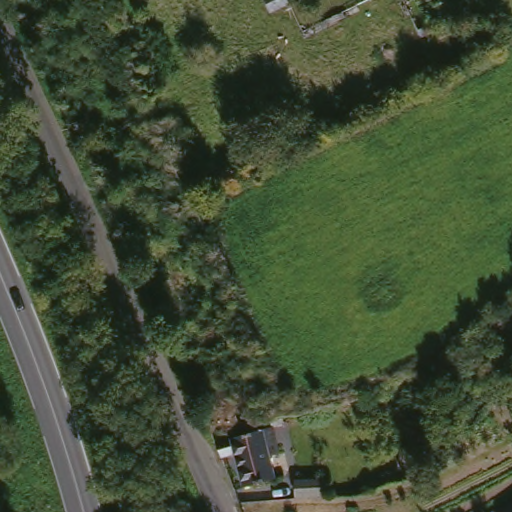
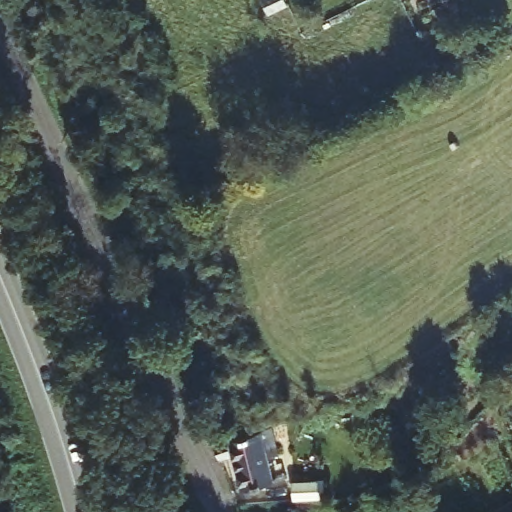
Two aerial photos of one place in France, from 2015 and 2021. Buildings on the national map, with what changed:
unchanged [(242,458),(222,463),(215,437),(286,419),(292,454),(277,457),(279,482),(246,487),(242,458)]
unchanged [(328,480),(329,498),(294,499),(294,484),(328,480)]

